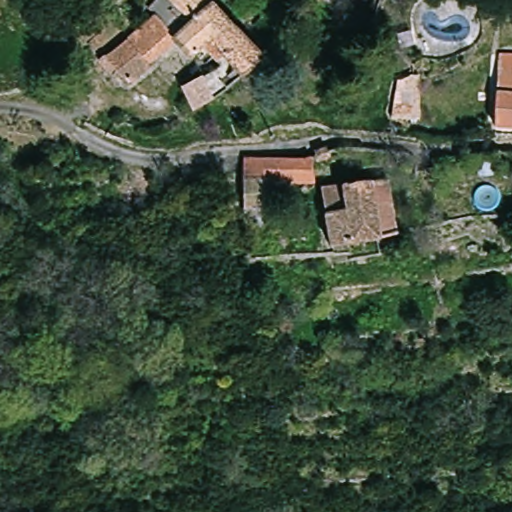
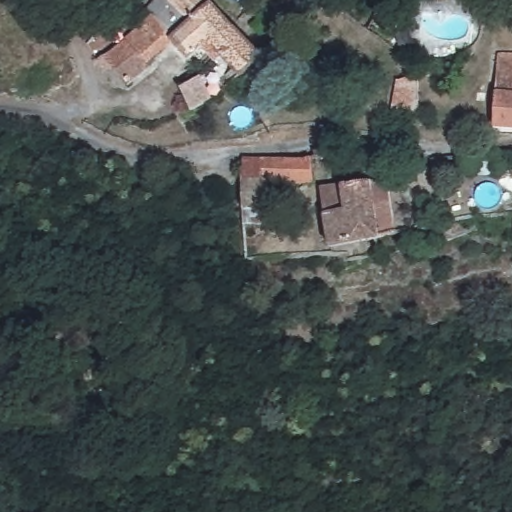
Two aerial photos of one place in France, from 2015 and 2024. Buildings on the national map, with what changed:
unchanged [(245,74),(212,40),(191,59),(172,35),(145,59),(151,65),(127,82),(105,56),(136,32),(157,16),(171,0),(212,0),(213,1),(235,25),(262,58),(245,74)]
unchanged [(245,74),(244,75),(243,77),(219,99),(201,107),(189,91),(218,67),(208,55),(197,65),(191,59),(212,40),(245,74)]
unchanged [(502,51),(512,52),(512,135),(488,137),(502,51)]
unchanged [(413,117),(387,114),(392,91),(409,79),(422,80),(413,117)]
unchanged [(312,181),(275,181),(275,206),(248,205),(246,176),(246,157),(311,156),(312,156),(312,181)]
unchanged [(391,202),(395,232),(331,247),(326,212),(322,187),(344,184),(385,177),(391,202)]

